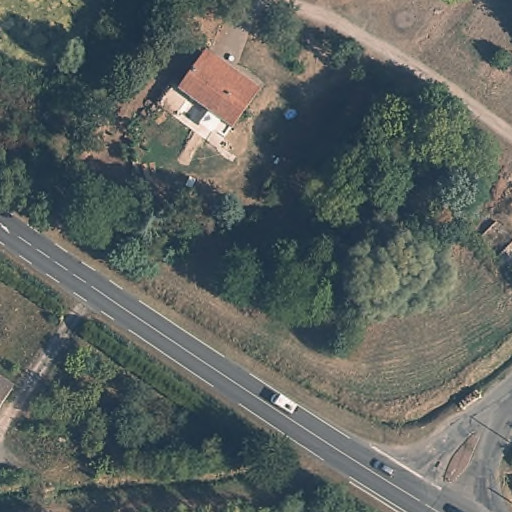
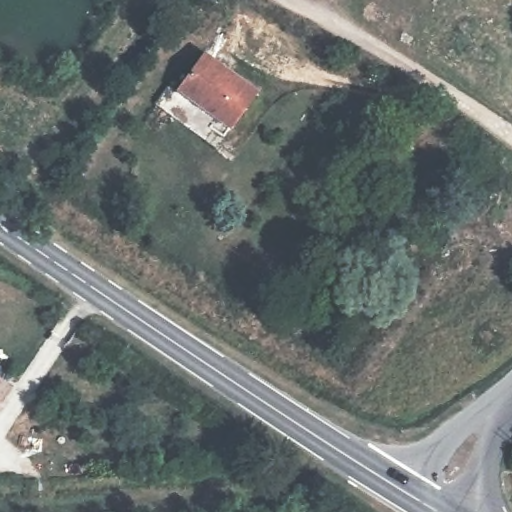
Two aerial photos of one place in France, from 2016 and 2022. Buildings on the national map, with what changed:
unchanged [(259,94),(234,130),(182,91),(207,57),(259,94)]
unchanged [(0,411),(0,377),(15,388),(0,411)]

